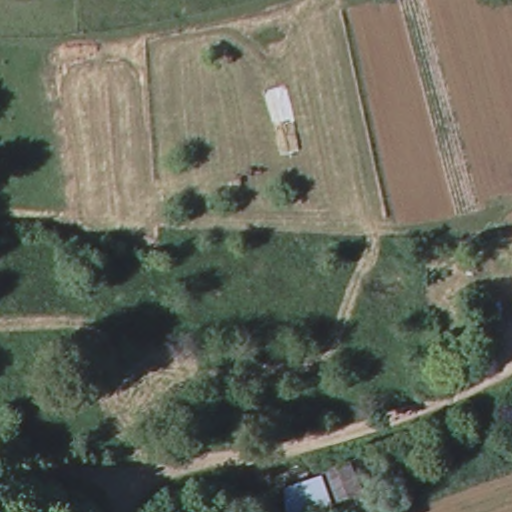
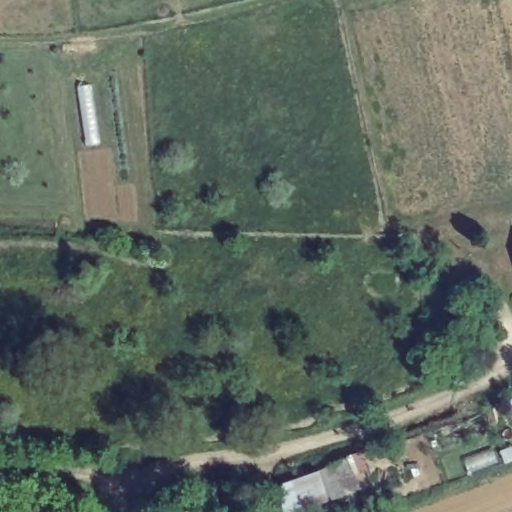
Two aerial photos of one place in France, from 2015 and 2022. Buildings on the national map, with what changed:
unchanged [(370,479),(280,511),(279,479),(357,451),(370,479)]

